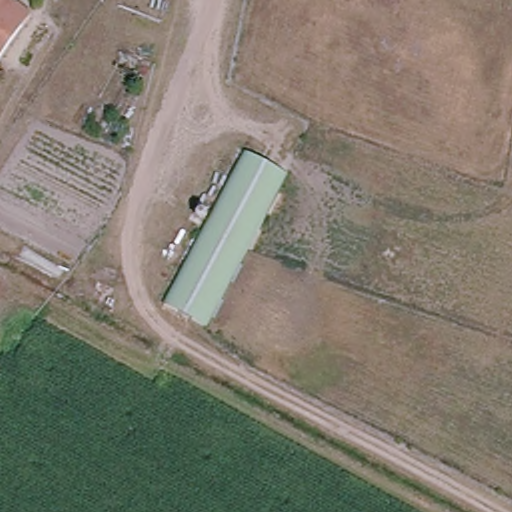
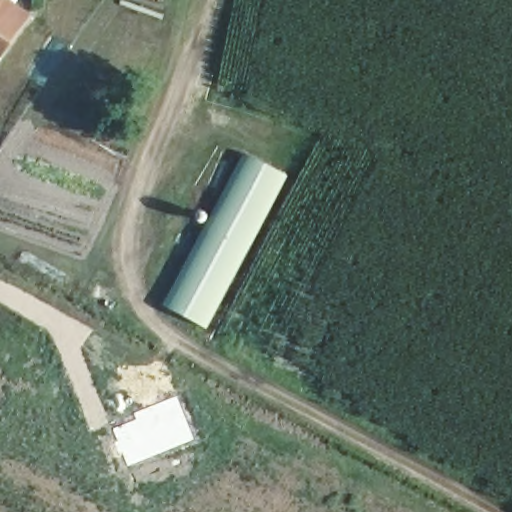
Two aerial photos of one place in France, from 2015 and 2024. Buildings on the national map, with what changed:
unchanged [(5,6),(19,16),(0,40),(0,0),(8,0),(9,1),(5,6)]
unchanged [(240,159),(286,181),(203,334),(160,309),(240,159)]
new [(136,419),(134,413),(177,396),(193,440),(127,467),(112,428),(136,419)]

